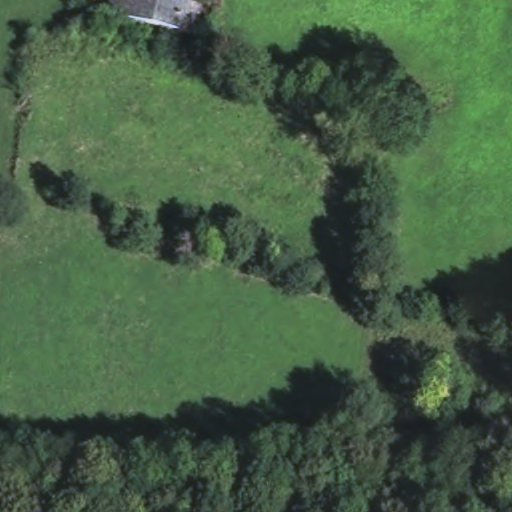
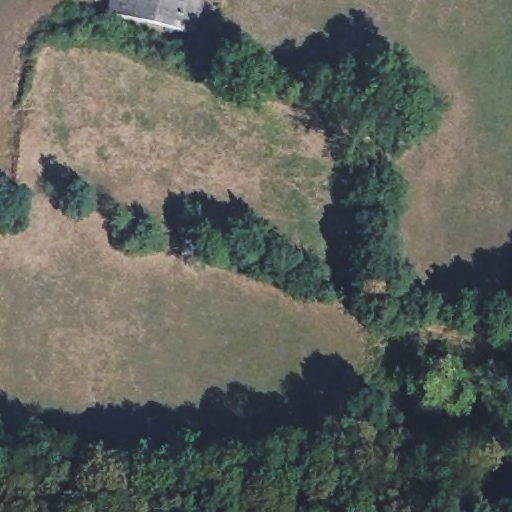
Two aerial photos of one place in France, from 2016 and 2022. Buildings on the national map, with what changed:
unchanged [(207,0),(197,49),(106,30),(112,0),(207,0)]

